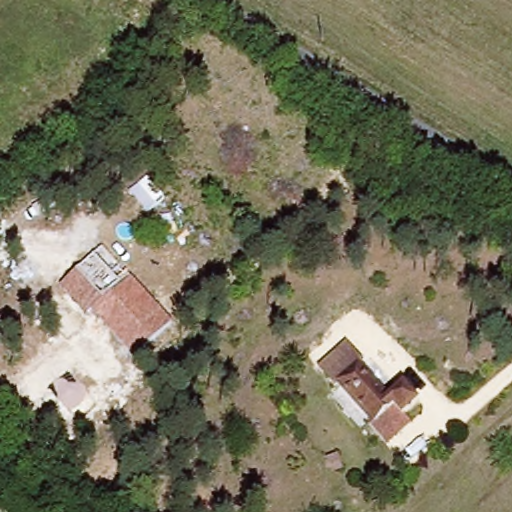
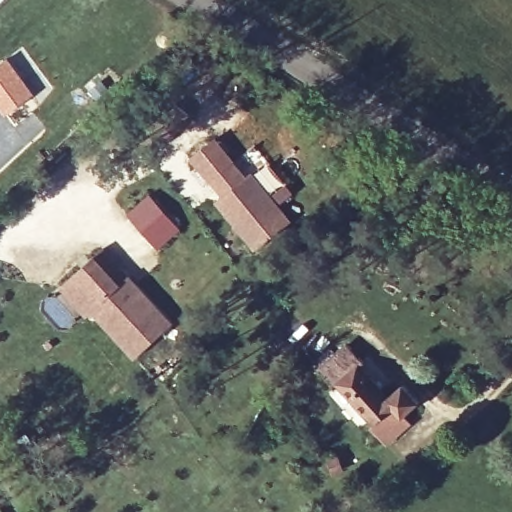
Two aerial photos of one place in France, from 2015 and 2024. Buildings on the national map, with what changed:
new [(34,94),(5,116),(0,109),(0,64),(8,58),(34,94)]
new [(171,100),(186,111),(164,140),(149,127),(171,100)]
new [(204,179),(186,155),(210,136),(228,161),(240,177),(246,172),(283,222),(247,249),(210,199),(216,194),(204,179)]
new [(181,229),(161,248),(127,214),(148,194),(181,229)]
unchanged [(172,324),(133,358),(93,312),(86,319),(59,287),(103,246),(172,324)]
unchanged [(364,432),(370,426),(336,390),(332,393),(315,375),(350,346),(362,357),(358,361),(391,396),(402,386),(423,407),(408,420),(376,446),(364,432)]

